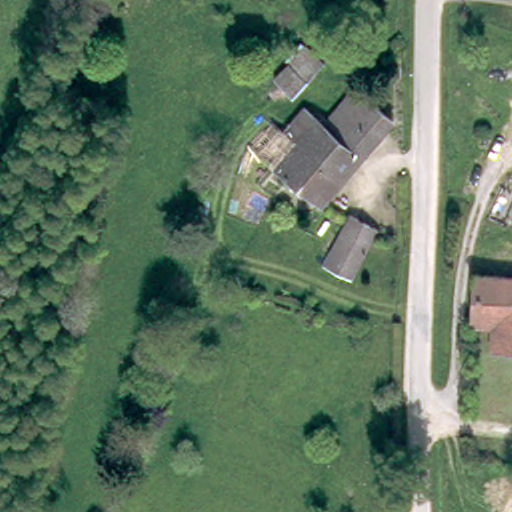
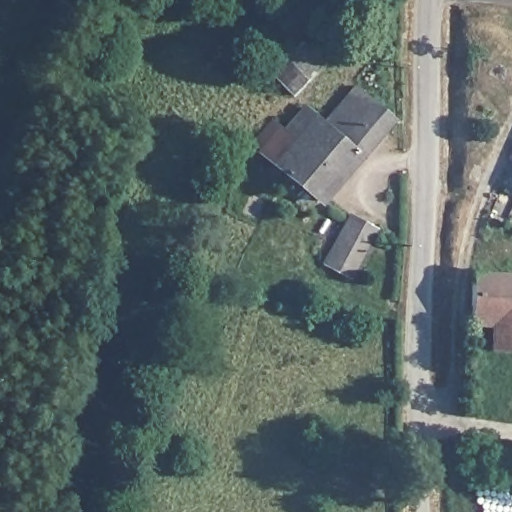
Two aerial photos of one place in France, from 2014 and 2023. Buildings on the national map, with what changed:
unchanged [(294,92),(276,72),(308,40),(326,58),(294,92)]
unchanged [(324,119),(354,82),(393,115),(323,198),(316,192),(306,202),(298,195),(308,185),(274,157),(251,139),(272,115),(286,126),(306,104),(314,110),(315,110),(324,119)]
unchanged [(379,230),(352,280),(324,265),(351,215),(379,230)]
unchanged [(494,320),(471,319),(472,270),(512,272),(512,345),(493,343),(494,320)]

